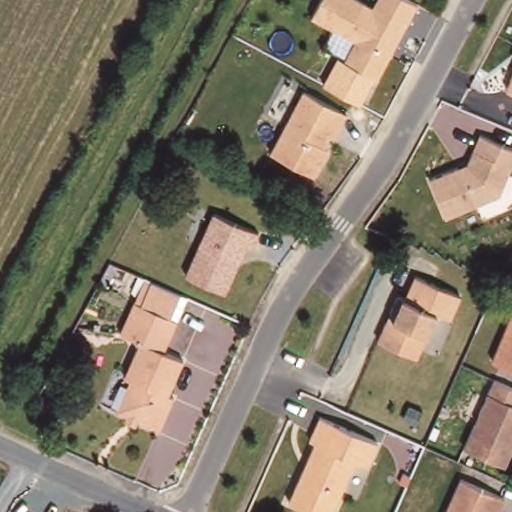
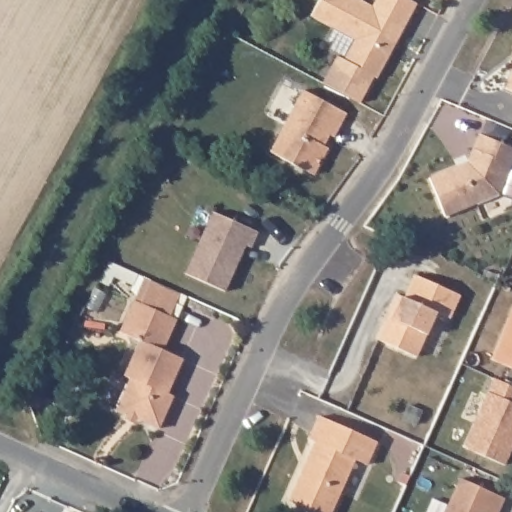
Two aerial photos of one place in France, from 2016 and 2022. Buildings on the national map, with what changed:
unchanged [(359,35),(316,11),(322,0),(374,0),(377,2),(379,0),(421,0),(381,74),(348,56),(359,35)]
unchanged [(377,81),(373,79),(360,104),(322,83),(337,56),(343,59),(345,54),(332,48),(328,39),(335,22),(359,35),(348,56),(381,74),(377,81)]
unchanged [(512,71),(512,86),(506,84),(512,71)]
unchanged [(326,148),(312,175),(270,153),(303,91),(347,114),(338,130),(328,149),(326,148)]
unchanged [(429,180),(458,168),(467,164),(480,135),(512,148),(512,166),(500,195),(446,218),(429,180)]
unchanged [(224,292),(185,274),(212,212),(258,232),(251,248),(245,245),(224,292)]
unchanged [(183,359),(167,394),(173,397),(159,429),(116,410),(130,378),(124,376),(140,341),(120,332),(134,301),(141,304),(151,281),(180,294),(170,317),(177,320),(163,351),(183,359)]
unchanged [(409,281),(454,301),(444,324),(430,318),(398,303),(409,281)]
unchanged [(379,328),(383,318),(391,300),(398,303),(430,318),(410,363),(371,345),(379,328)]
unchanged [(512,305),(512,364),(491,355),(512,305)]
unchanged [(463,447),(487,392),(494,378),(512,386),(512,448),(504,465),(463,447)]
unchanged [(367,460),(356,455),(330,512),(325,512),(289,496),(315,437),(310,434),(320,411),(377,437),(367,460)]
unchanged [(408,480),(406,486),(399,483),(403,473),(410,477),(408,480)]
unchanged [(460,473),(505,493),(496,512),(494,512),(489,510),(488,512),(443,512),(460,473)]

